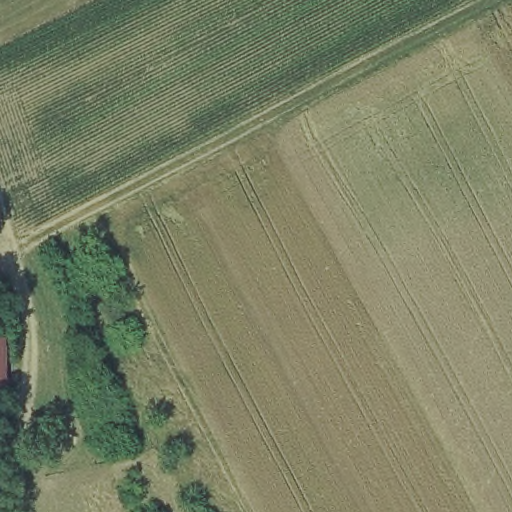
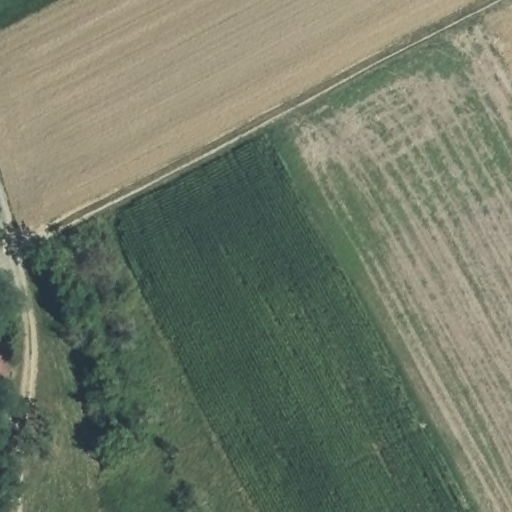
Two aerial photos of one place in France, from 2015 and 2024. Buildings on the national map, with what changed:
unchanged [(0,389),(0,337),(15,338),(13,388),(0,389)]

